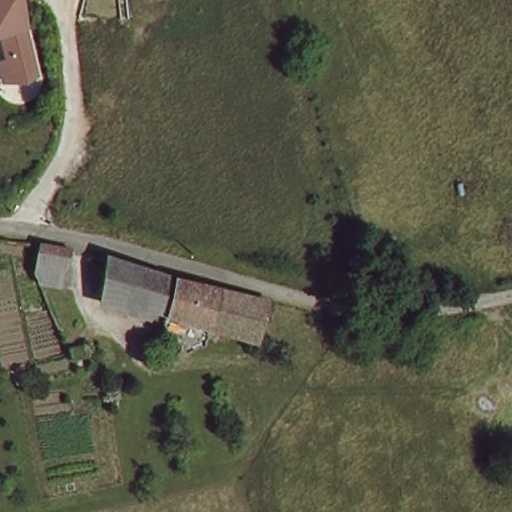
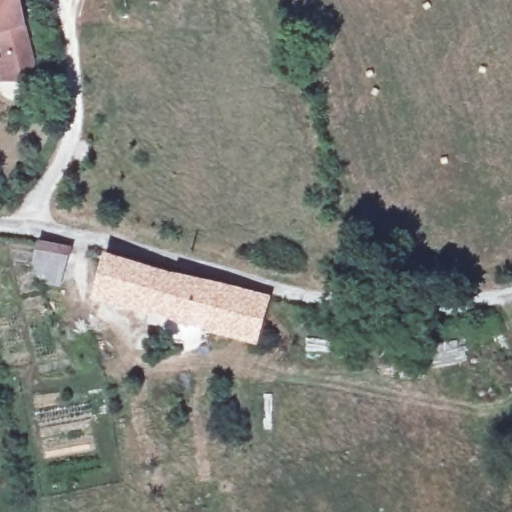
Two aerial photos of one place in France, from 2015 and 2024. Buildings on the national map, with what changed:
unchanged [(7,54),(0,26),(0,0),(20,0),(37,67),(18,72),(2,76),(0,66),(0,55),(7,54)]
unchanged [(67,256),(72,257),(55,292),(28,278),(40,251),(67,256)]
unchanged [(267,306),(257,344),(102,302),(107,262),(200,291),(267,306)]

